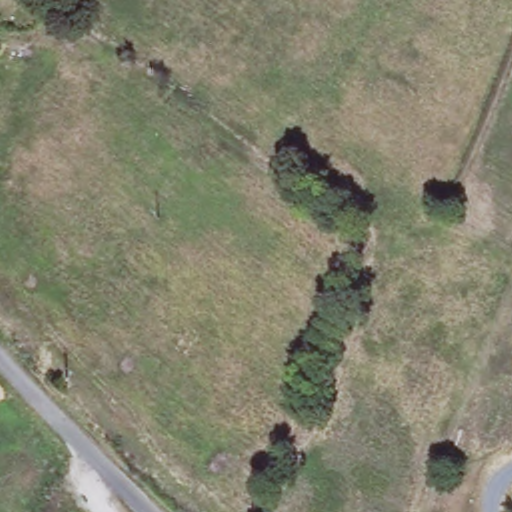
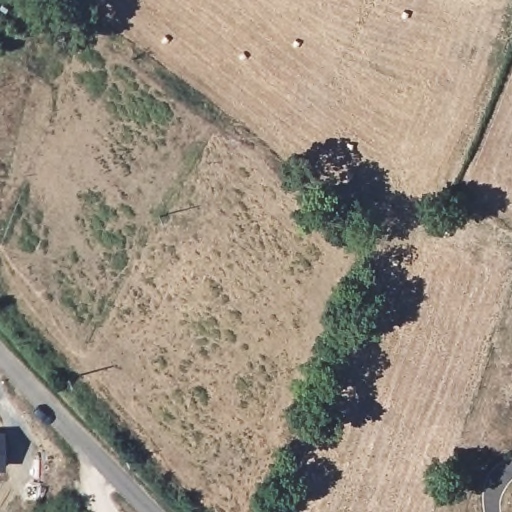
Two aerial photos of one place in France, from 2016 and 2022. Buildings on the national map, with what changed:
new [(0,469),(0,436),(4,436),(5,469),(0,469)]

